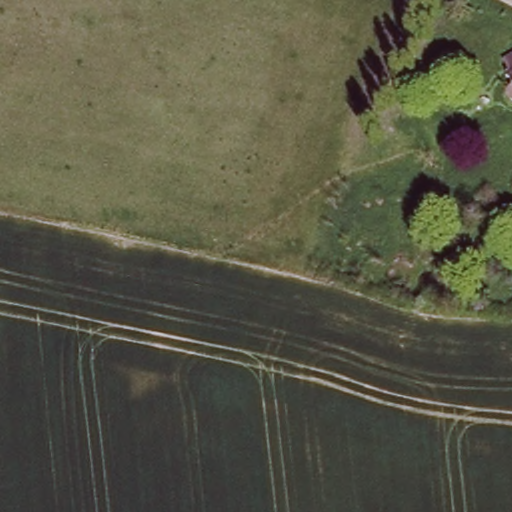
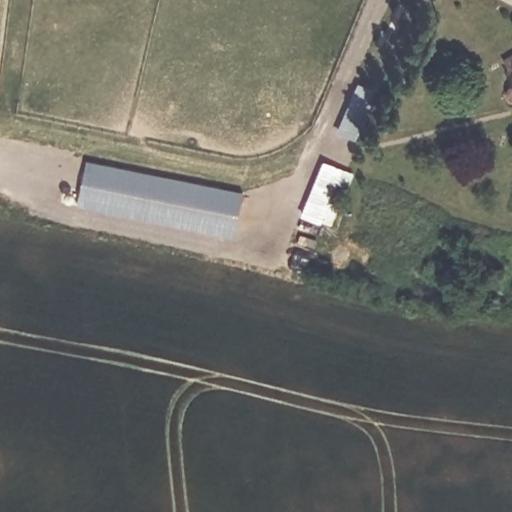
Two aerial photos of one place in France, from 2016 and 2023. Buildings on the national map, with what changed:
unchanged [(508,57),(512,55),(512,63),(508,57)]
unchanged [(508,86),(511,80),(505,72),(512,68),(512,92),(508,86)]
new [(336,131),(357,84),(380,89),(357,139),(336,131)]
new [(87,160),(243,191),(233,238),(78,206),(87,160)]
new [(324,161),(343,169),(321,223),(302,215),(324,161)]

